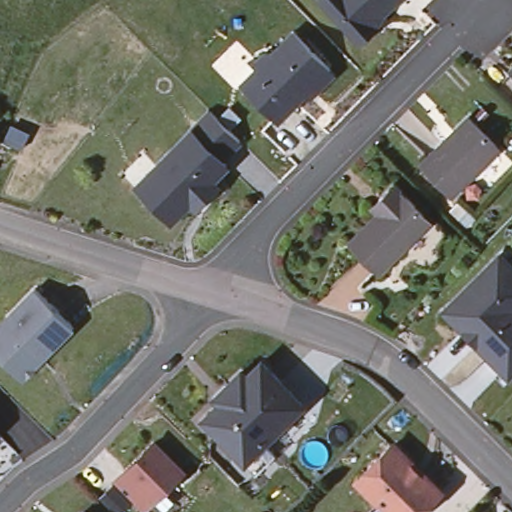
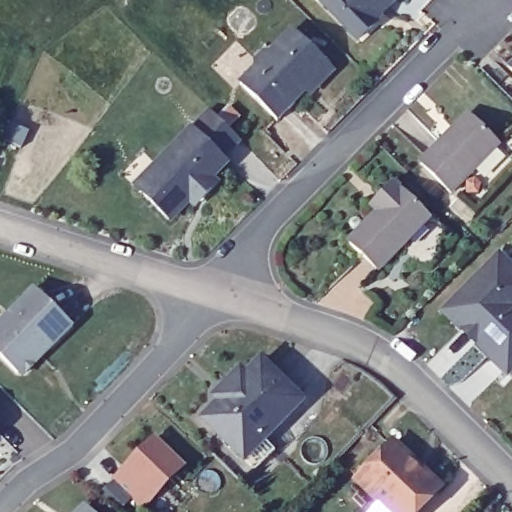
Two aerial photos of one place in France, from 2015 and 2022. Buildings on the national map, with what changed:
unchanged [(313,0),(403,0),(381,21),(375,33),(357,50),(317,5),(313,0)]
unchanged [(285,30),(335,80),(310,105),(305,100),(277,128),(232,83),(285,30)]
unchanged [(512,75),(510,73),(512,70),(512,75)]
unchanged [(205,114),(235,144),(217,161),(187,132),(205,114)]
unchanged [(467,114),(471,117),(505,151),(457,200),(420,162),(447,135),(467,114)]
unchanged [(185,205),(165,225),(138,197),(131,190),(150,170),(187,132),(217,161),(223,166),(207,183),(213,189),(199,204),(192,211),(185,205)]
unchanged [(370,204),(378,196),(392,180),(430,216),(378,270),(348,241),(377,211),(370,204)]
unchanged [(512,281),(512,312),(510,314),(512,316),(512,372),(502,382),(439,317),(493,262),(512,281)]
unchanged [(73,325),(27,372),(18,372),(0,354),(0,323),(37,287),(73,325)]
unchanged [(512,312),(512,316),(510,314),(512,312)]
unchanged [(202,412),(219,396),(214,391),(242,364),(247,370),(262,355),(303,396),(263,436),(274,447),(255,465),(202,412)]
unchanged [(158,435),(187,463),(158,491),(147,502),(120,475),(130,463),(158,435)]
unchanged [(363,480),(393,438),(435,470),(405,510),(404,512),(382,512),(392,500),(363,480)]
unchanged [(83,503),(92,512),(68,512),(77,503),(83,503)]

